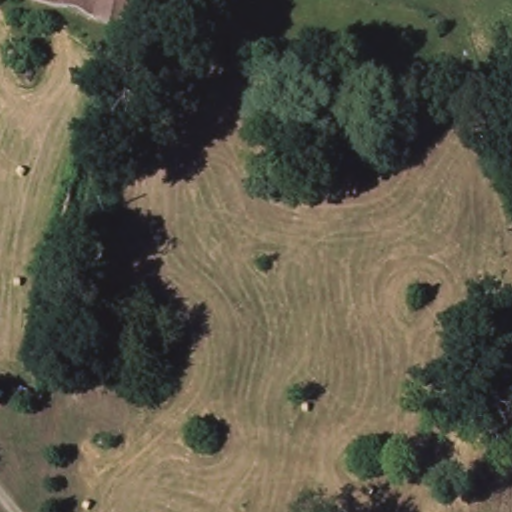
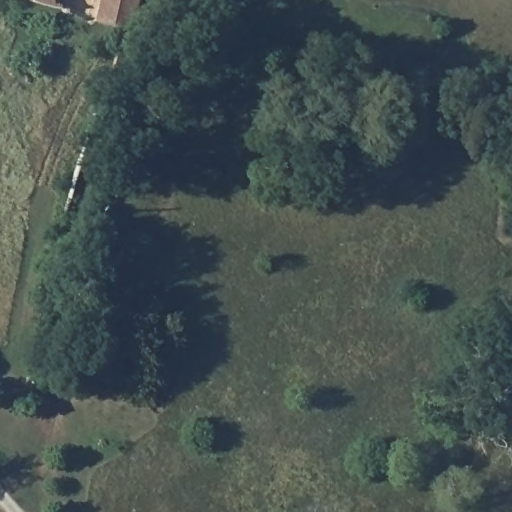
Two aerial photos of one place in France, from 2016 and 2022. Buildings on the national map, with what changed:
unchanged [(37,5),(16,0),(135,0),(127,29),(120,27),(37,5)]

